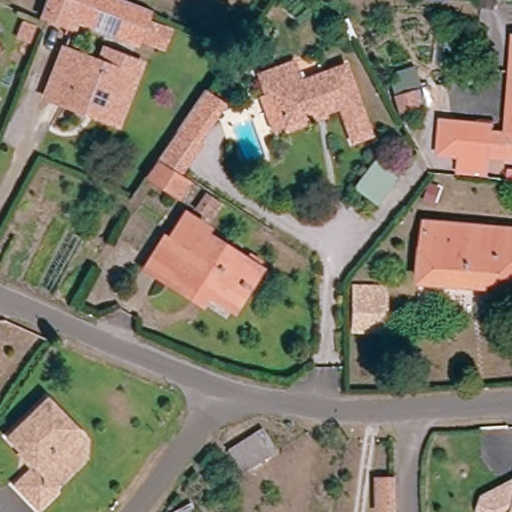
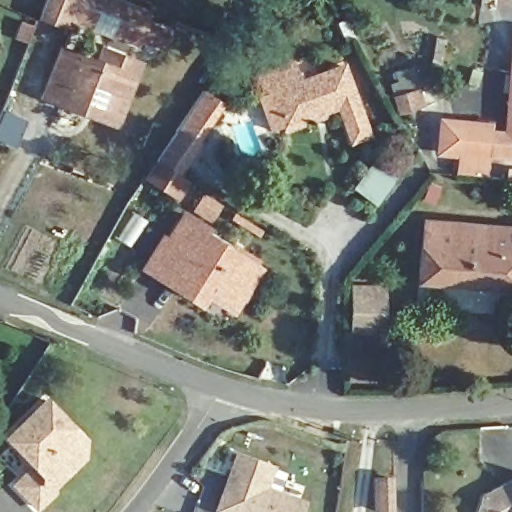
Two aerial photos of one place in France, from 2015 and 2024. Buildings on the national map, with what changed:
unchanged [(66,21),(64,25),(36,15),(42,0),(75,0),(66,21)]
unchanged [(145,12),(132,46),(66,21),(75,0),(112,0),(116,1),(145,12)]
unchanged [(60,111),(38,103),(55,54),(80,63),(91,67),(96,53),(114,59),(132,66),(113,120),(111,128),(60,111)]
unchanged [(339,109),(323,115),(322,113),(312,117),(283,128),(284,129),(271,134),(259,102),(266,99),(258,79),(292,65),(300,85),(343,68),(356,102),(370,137),(353,143),(339,109)]
unchanged [(487,130),(507,131),(512,73),(512,151),(485,149),(487,130)]
unchanged [(487,118),(487,130),(485,149),(485,171),(451,170),(451,155),(436,154),(437,117),(487,118)]
unchanged [(182,199),(156,183),(167,167),(176,154),(186,139),(205,151),(187,179),(193,183),(182,199)]
unchanged [(378,205),(358,190),(376,166),(396,181),(378,205)]
unchanged [(206,201),(220,209),(210,225),(196,216),(206,201)]
unchanged [(146,276),(165,246),(170,249),(187,221),(208,234),(205,240),(259,274),(233,317),(171,278),(165,288),(146,276)]
unchanged [(425,228),(512,235),(512,295),(420,287),(425,228)]
unchanged [(359,336),(360,300),(360,293),(391,294),(391,301),(389,337),(359,336)]
unchanged [(22,450),(8,436),(46,398),(61,413),(85,437),(86,452),(67,471),(59,479),(55,479),(55,489),(39,505),(16,482),(33,465),(20,453),(22,450)]
demolished [(273,435),(287,457),(253,478),(239,457),(273,435)]
new [(236,451),(276,465),(268,487),(307,500),(303,512),(218,512),(214,510),(236,451)]
unchanged [(395,480),(395,512),(378,512),(378,480),(395,480)]
unchanged [(505,486),(512,488),(512,512),(477,512),(481,499),(505,486)]

